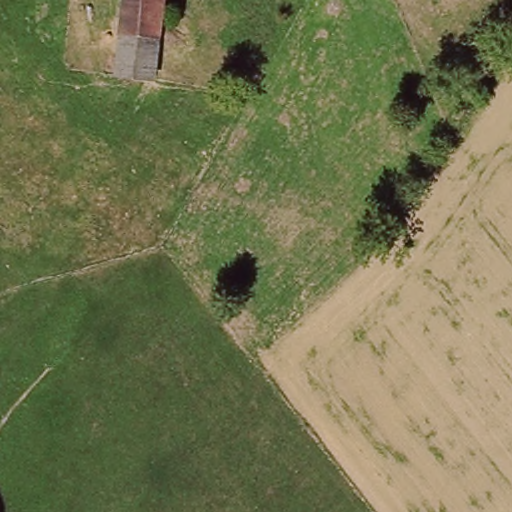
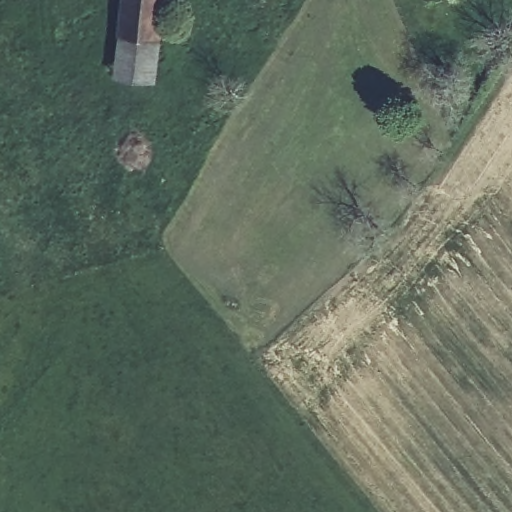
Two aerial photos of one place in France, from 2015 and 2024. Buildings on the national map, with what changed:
unchanged [(119,0),(157,0),(157,5),(164,10),(160,35),(116,32),(119,0)]
unchanged [(157,80),(112,78),(116,32),(160,35),(157,80)]

